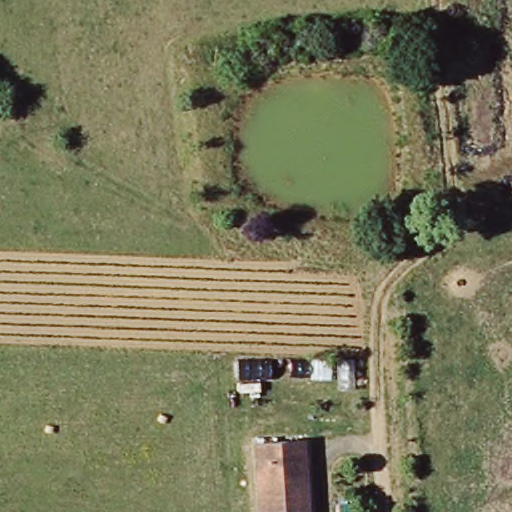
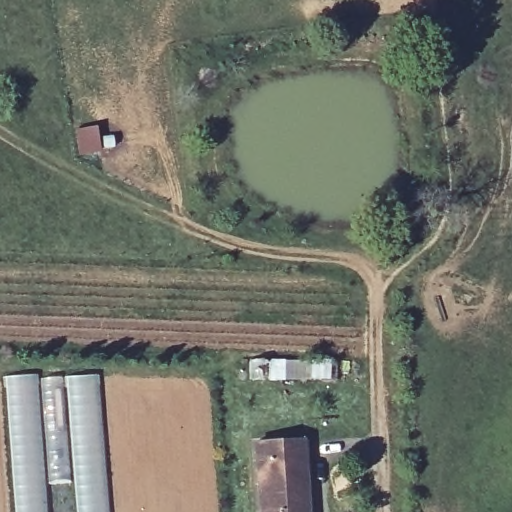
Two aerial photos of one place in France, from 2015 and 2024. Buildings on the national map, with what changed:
new [(110,512),(75,512),(72,481),(62,375),(98,372),(110,512)]
new [(39,377),(46,482),(48,512),(14,512),(4,375),(38,373),(39,377)]
new [(62,375),(72,481),(46,482),(39,377),(62,375)]
unchanged [(300,440),(303,463),(306,512),(258,512),(255,442),(300,440)]

